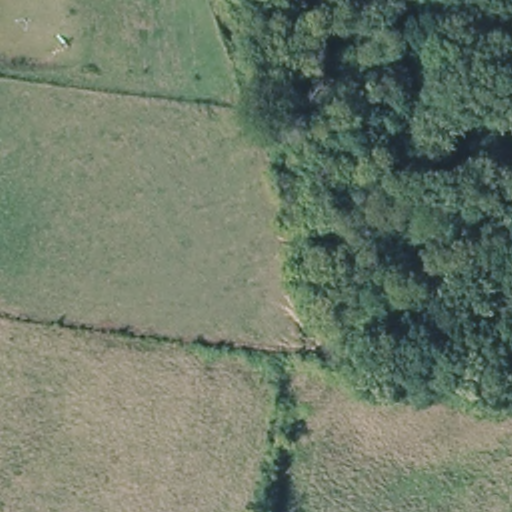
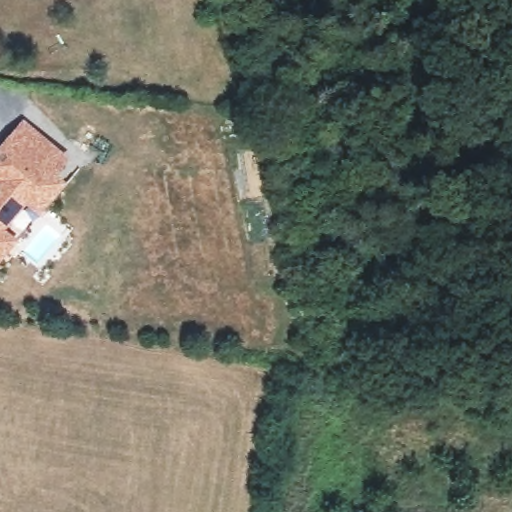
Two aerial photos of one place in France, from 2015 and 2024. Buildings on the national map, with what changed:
new [(69,159),(57,172),(68,181),(39,216),(28,205),(7,229),(18,240),(0,262),(0,146),(23,119),(69,159)]

